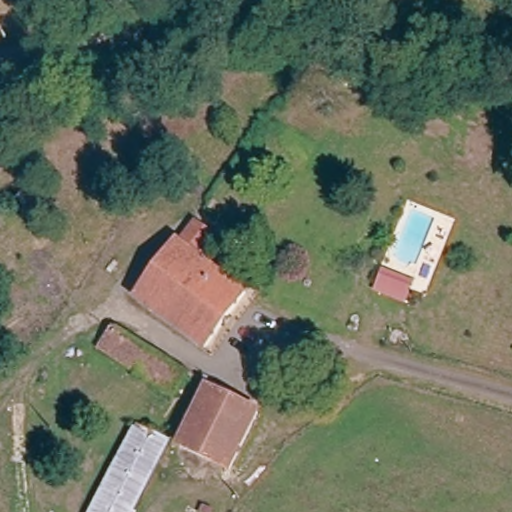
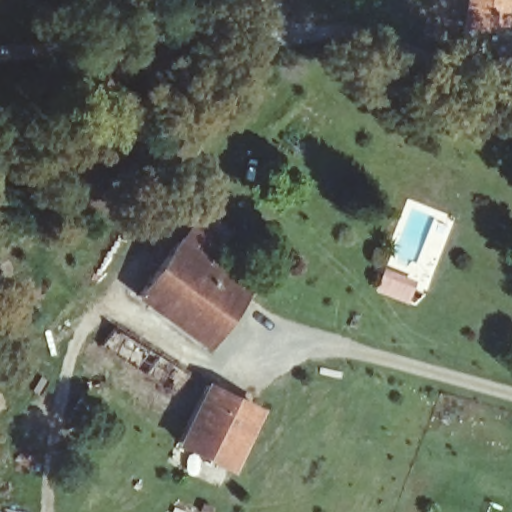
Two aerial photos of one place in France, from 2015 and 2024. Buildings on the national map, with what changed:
new [(510,0),(505,37),(459,29),(463,0),(510,0)]
unchanged [(204,230),(194,246),(249,290),(207,346),(141,295),(194,221),(204,230)]
unchanged [(373,279),(403,292),(396,307),(366,294),(373,279)]
unchanged [(117,322),(182,365),(165,394),(151,386),(156,376),(102,342),(117,322)]
unchanged [(255,409),(229,467),(175,440),(204,384),(255,409)]
demolished [(126,512),(94,512),(139,422),(164,435),(126,512)]

